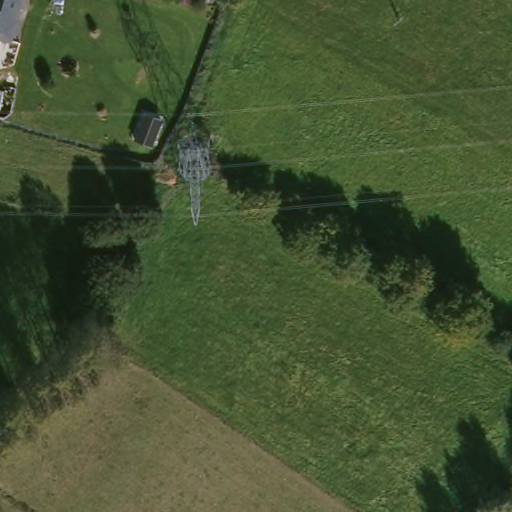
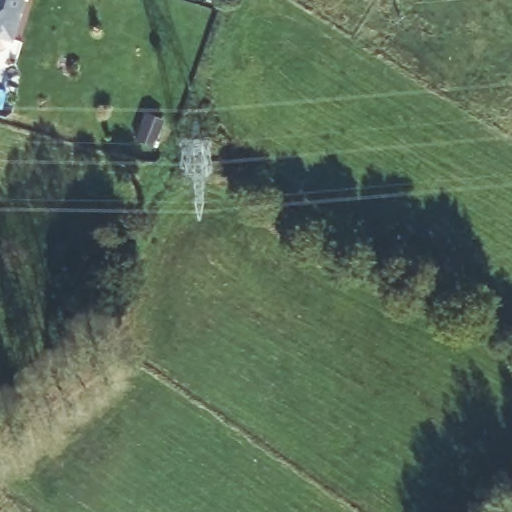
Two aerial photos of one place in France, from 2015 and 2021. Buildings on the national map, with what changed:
unchanged [(0,43),(0,0),(25,0),(13,45),(0,43)]

